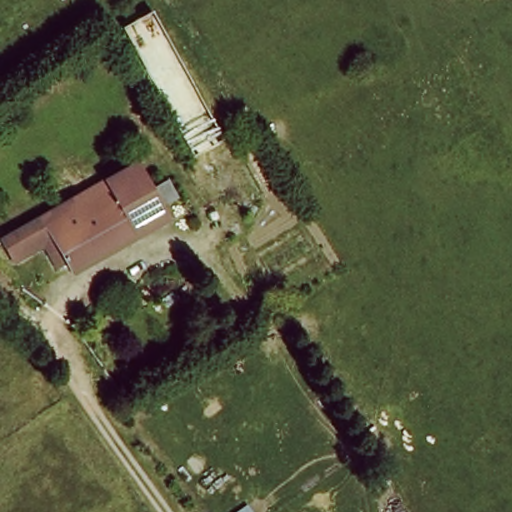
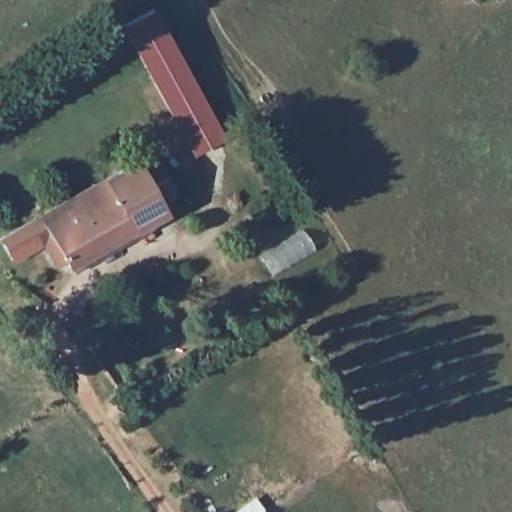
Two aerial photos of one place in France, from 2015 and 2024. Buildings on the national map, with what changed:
new [(122,26),(153,9),(224,141),(193,156),(122,26)]
unchanged [(133,167),(165,219),(71,273),(52,239),(40,217),(133,167)]
unchanged [(52,239),(14,261),(2,241),(40,217),(52,239)]

